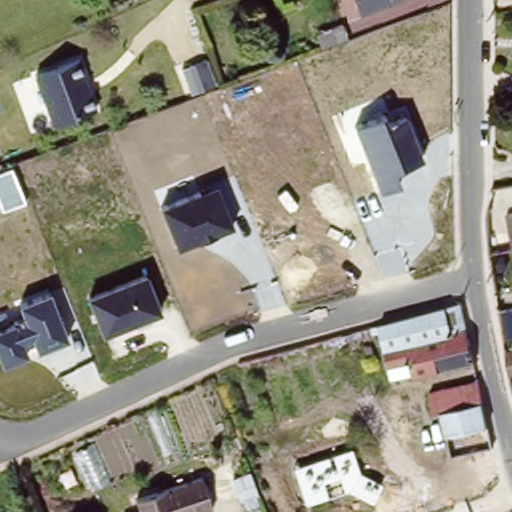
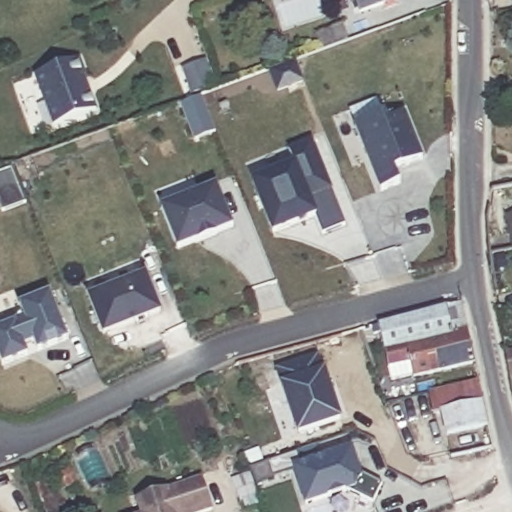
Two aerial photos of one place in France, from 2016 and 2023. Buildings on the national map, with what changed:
unchanged [(403,3),(359,19),(352,0),(402,0),(403,3)]
unchanged [(323,48),(318,34),(341,25),(347,39),(323,48)]
new [(209,57),(219,87),(200,94),(193,96),(183,67),(209,57)]
unchanged [(80,58),(99,111),(51,127),(34,76),(80,58)]
new [(193,101),(200,99),(214,132),(194,140),(181,106),(193,101)]
unchanged [(390,120),(408,114),(424,161),(397,172),(401,182),(377,191),(355,125),(386,114),(390,120)]
new [(322,234),(315,216),(272,232),(251,179),(294,164),(288,150),(312,140),(332,190),(331,190),(344,224),(322,234)]
unchanged [(235,228),(176,249),(161,204),(218,184),(235,228)]
unchanged [(511,214),(510,206),(512,205),(512,231),(509,214),(511,214)]
unchanged [(148,273),(162,315),(102,337),(86,296),(148,273)]
unchanged [(20,305),(50,292),(67,339),(38,350),(34,341),(24,345),(28,356),(2,365),(0,361),(0,326),(24,317),(20,305)]
unchanged [(474,367),(411,383),(410,381),(392,385),(379,331),(461,308),(474,367)]
unchanged [(504,342),(498,312),(512,309),(512,340),(504,342)]
unchanged [(510,377),(506,355),(512,354),(512,376),(510,377)]
new [(300,436),(277,373),(317,358),(323,373),(324,373),(341,421),(300,436)]
unchanged [(488,449),(447,457),(437,412),(430,413),(427,395),(474,383),(488,449)]
new [(351,450),(359,474),(381,486),(372,503),(347,492),(305,506),(293,469),(351,450)]
unchanged [(202,512),(138,512),(134,500),(167,488),(202,477),(214,508),(202,512)]

